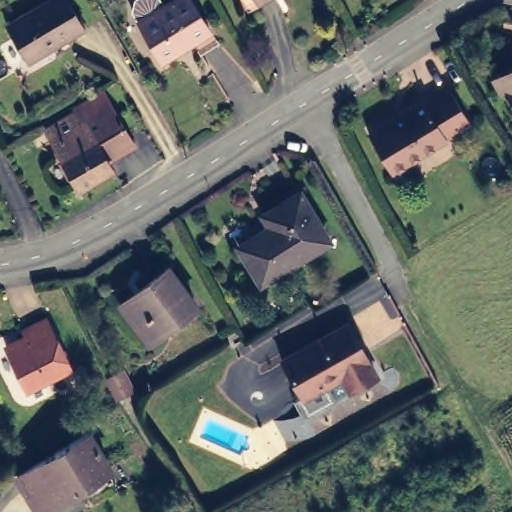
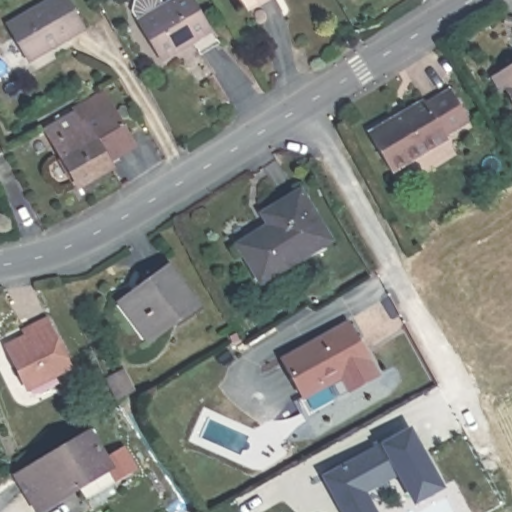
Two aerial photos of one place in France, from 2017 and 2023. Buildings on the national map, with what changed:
unchanged [(66,0),(84,31),(50,51),(48,47),(25,60),(7,27),(53,0),(66,0)]
unchanged [(191,0),(208,31),(160,61),(137,24),(176,0),(191,0)]
unchanged [(257,0),(263,0),(258,2),(257,0)]
unchanged [(512,67),(512,106),(495,79),(512,67)]
unchanged [(107,167),(112,173),(78,192),(52,146),(83,127),(77,115),(75,112),(104,95),(130,142),(135,151),(119,160),(107,167)]
unchanged [(423,110),(423,112),(450,97),(467,126),(443,140),(445,145),(391,177),(372,142),(423,110)]
unchanged [(274,226),(268,217),(302,195),(330,237),(270,285),(245,249),(274,226)]
unchanged [(169,268),(193,303),(148,337),(122,304),(169,268)]
unchanged [(72,368),(32,392),(7,348),(23,339),(21,335),(35,328),(47,321),(72,368)]
unchanged [(349,388),(341,374),(302,395),(282,356),(350,322),(377,373),(349,388)]
unchanged [(103,376),(125,367),(135,395),(115,403),(103,376)]
new [(321,476),(379,445),(410,428),(445,489),(413,507),(397,477),(367,493),(377,512),(341,512),(321,476)]
unchanged [(86,435),(107,472),(41,512),(34,512),(15,477),(86,435)]

